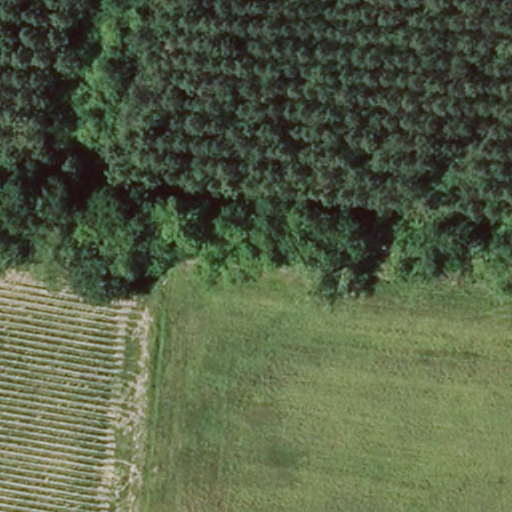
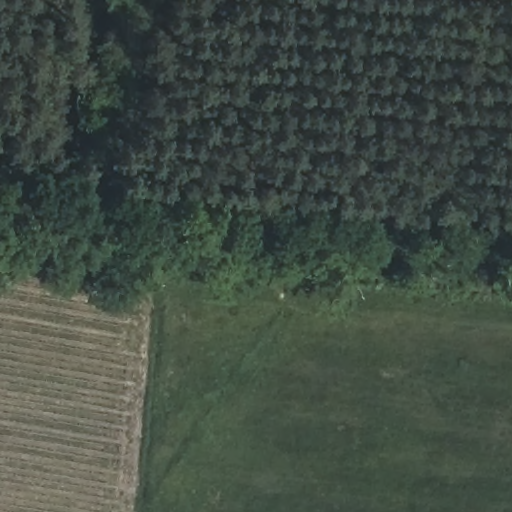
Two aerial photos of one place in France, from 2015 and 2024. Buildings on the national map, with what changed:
[]

